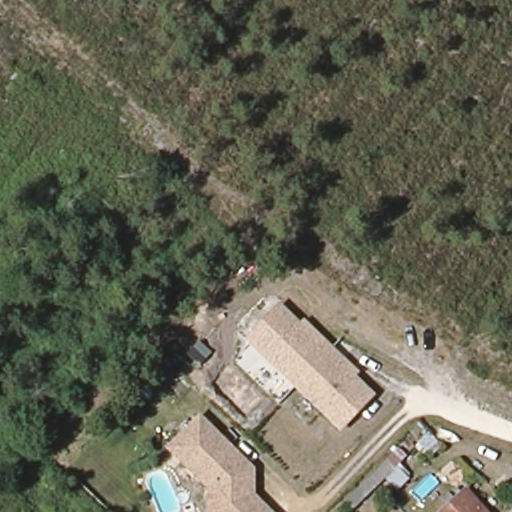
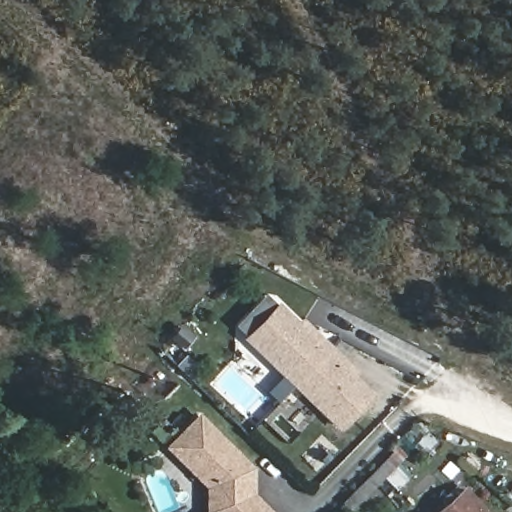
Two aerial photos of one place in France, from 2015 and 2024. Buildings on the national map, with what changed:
unchanged [(351,376),(369,395),(339,425),(252,336),(283,306),(302,326),(306,322),(318,335),(342,359),(355,372),(351,376)]
unchanged [(167,449),(197,419),(250,471),(250,478),(250,491),(250,497),(264,512),(207,512),(207,489),(167,449)]
unchanged [(402,456),(351,508),(343,501),(395,449),(402,456)]
unchanged [(440,512),(445,508),(439,502),(448,494),(453,500),(462,492),(479,512),(440,512)]

